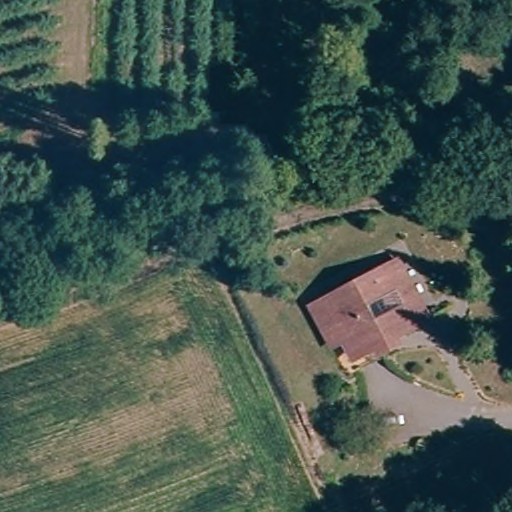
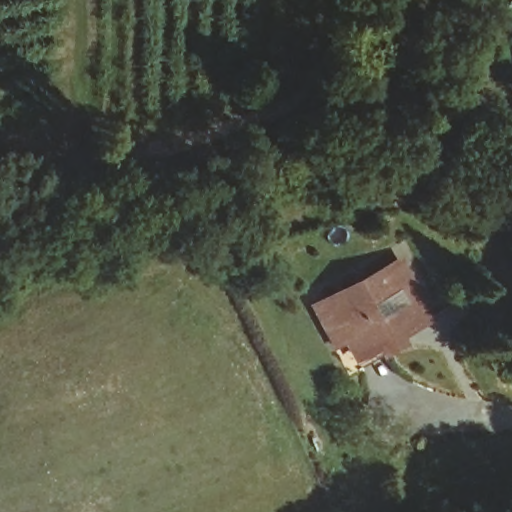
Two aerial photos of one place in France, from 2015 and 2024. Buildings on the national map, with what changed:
unchanged [(326,303),(394,264),(400,261),(432,316),(426,320),(359,359),(326,303)]

